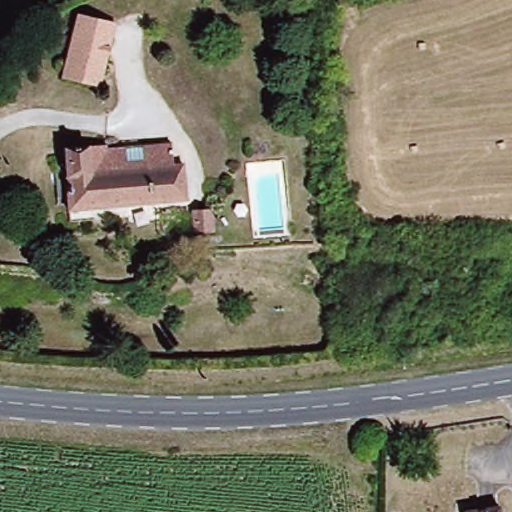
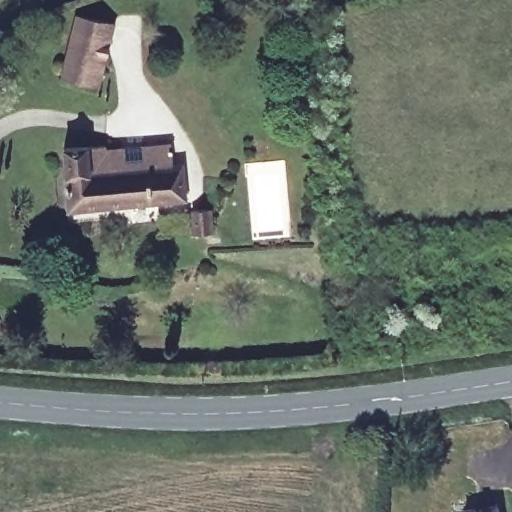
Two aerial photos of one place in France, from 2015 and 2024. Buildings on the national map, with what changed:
unchanged [(64,76),(78,29),(81,14),(119,25),(114,39),(101,87),(64,76)]
unchanged [(76,151),(116,148),(116,157),(173,151),(175,169),(191,166),(192,202),(79,215),(78,203),(67,205),(63,164),(75,163),(76,151)]
unchanged [(226,233),(218,234),(218,242),(205,245),(199,214),(221,210),(226,233)]
unchanged [(363,477),(363,447),(382,446),(381,477),(363,477)]
unchanged [(505,508),(505,512),(479,512),(505,508)]

